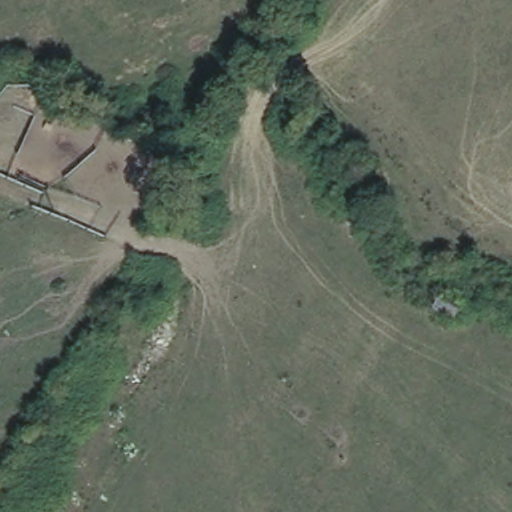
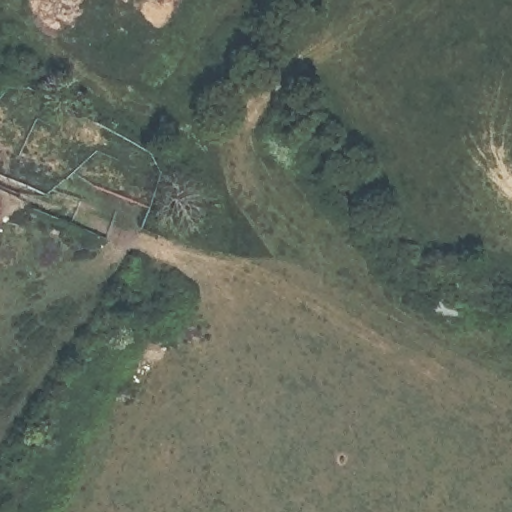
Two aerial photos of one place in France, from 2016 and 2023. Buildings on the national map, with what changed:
unchanged [(460,293),(483,307),(472,329),(446,312),(460,293)]

